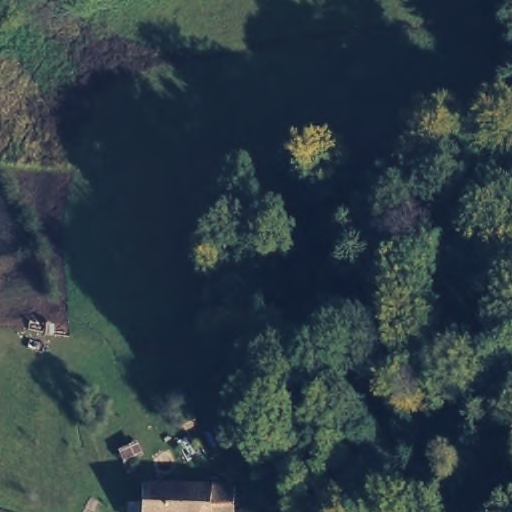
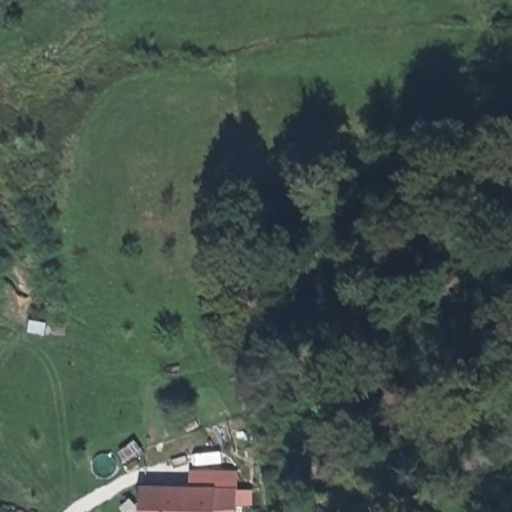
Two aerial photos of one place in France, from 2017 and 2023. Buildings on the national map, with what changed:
unchanged [(224,512),(129,512),(127,488),(224,490),(224,512)]

